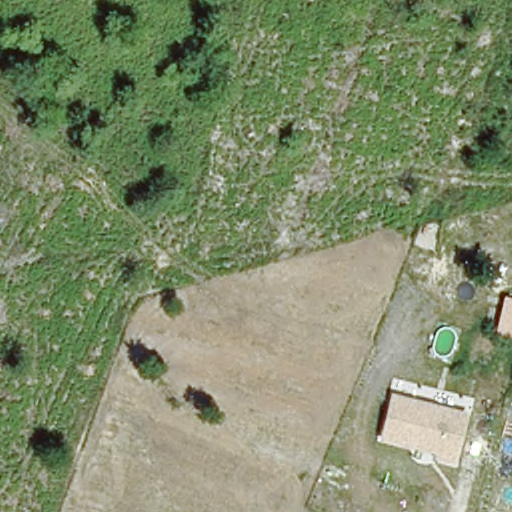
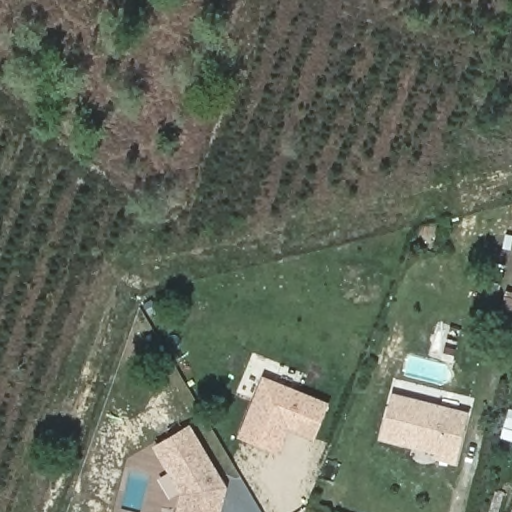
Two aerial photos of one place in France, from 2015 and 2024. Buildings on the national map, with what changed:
unchanged [(497,334),(506,295),(512,297),(512,337),(497,334)]
new [(281,451),(244,437),(266,378),(328,402),(316,437),(300,430),(291,427),(281,451)]
unchanged [(383,441),(392,393),(468,412),(457,463),(383,441)]
new [(180,494),(152,447),(190,424),(227,488),(221,512),(175,512),(180,494)]

